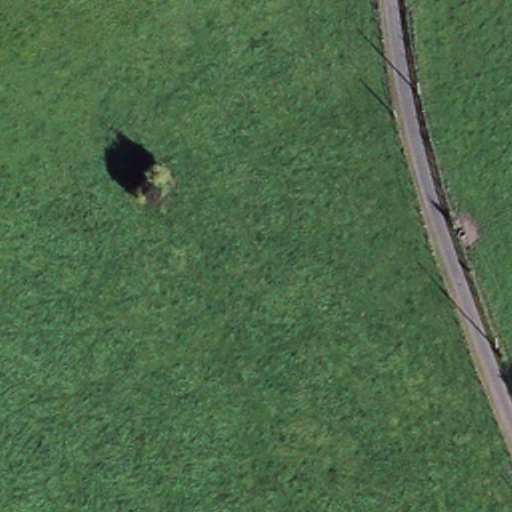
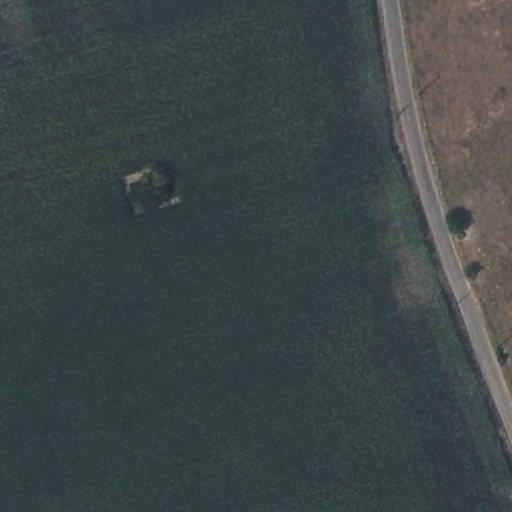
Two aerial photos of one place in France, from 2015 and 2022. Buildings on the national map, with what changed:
[]

